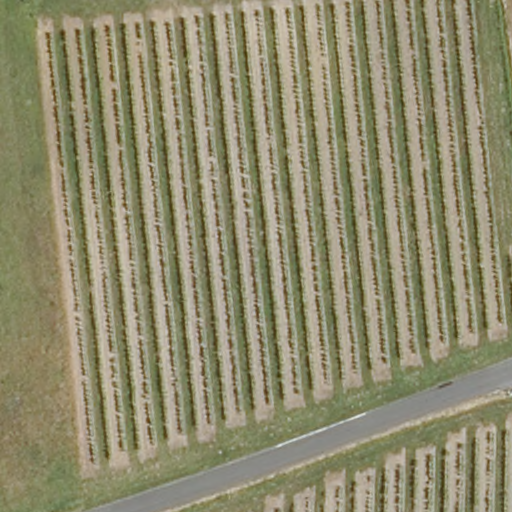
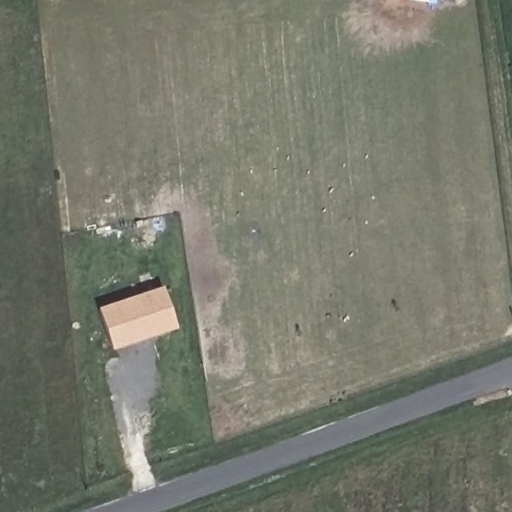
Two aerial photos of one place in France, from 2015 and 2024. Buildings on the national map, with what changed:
new [(161,290),(174,328),(110,350),(97,312),(161,290)]

